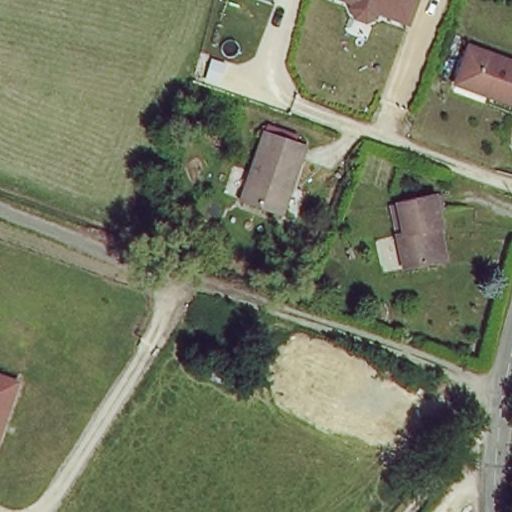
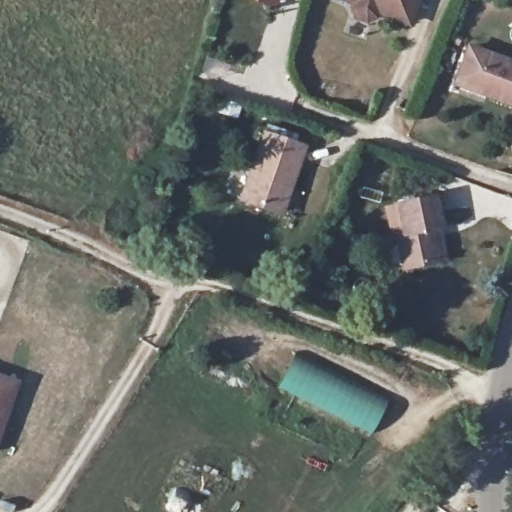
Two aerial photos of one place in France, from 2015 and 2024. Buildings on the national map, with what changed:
unchanged [(412,17),(397,12),(398,10),(380,5),(378,12),(369,17),(359,14),(354,5),(355,0),(417,0),(412,17)]
unchanged [(512,61),(512,102),(488,95),(489,90),(458,80),(468,47),(512,61)]
unchanged [(283,202),(290,204),(286,218),(248,206),(269,140),(307,151),(294,192),(287,190),(283,202)]
unchanged [(436,262),(406,270),(397,237),(405,234),(398,206),(433,199),(441,226),(437,227),(444,260),(436,262)]
new [(279,385),(295,355),(386,400),(371,431),(279,385)]
unchanged [(0,438),(0,370),(21,377),(0,438)]

